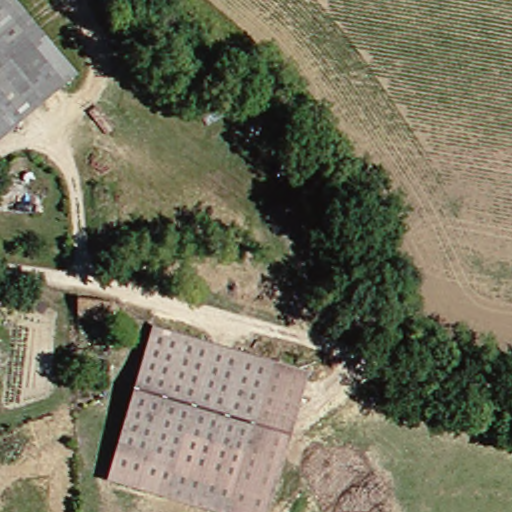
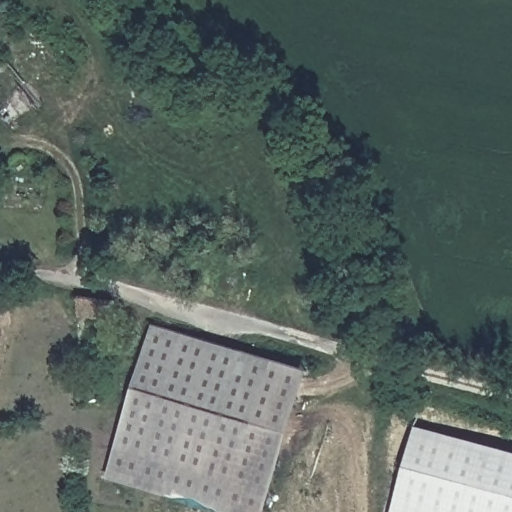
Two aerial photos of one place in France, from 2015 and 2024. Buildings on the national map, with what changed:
demolished [(0,59),(0,0),(17,0),(78,75),(0,137),(0,102),(20,86),(0,59)]
demolished [(0,102),(0,59),(20,86),(0,102)]
new [(99,313),(96,333),(59,328),(61,307),(99,313)]
unchanged [(276,356),(244,469),(181,454),(169,494),(108,477),(152,322),(276,356)]
unchanged [(308,366),(266,512),(231,512),(169,494),(181,454),(244,469),(276,356),(308,366)]
new [(414,427),(512,451),(512,512),(393,512),(414,427)]

